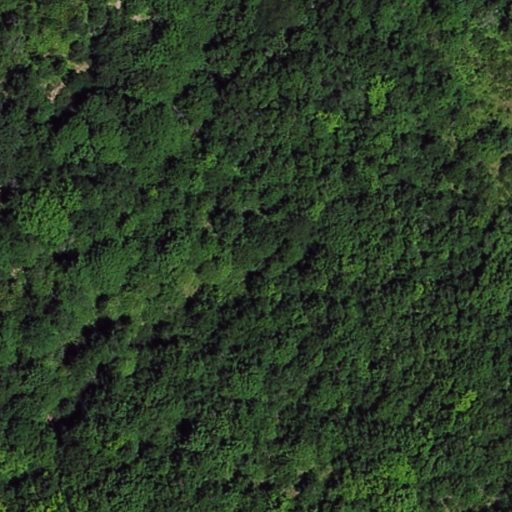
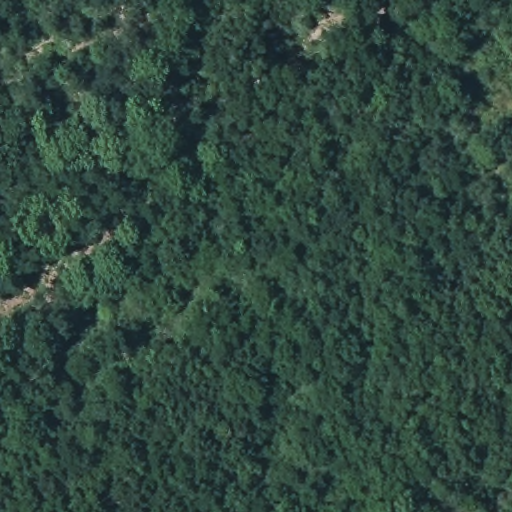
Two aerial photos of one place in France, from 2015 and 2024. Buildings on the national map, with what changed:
unchanged [(367,443),(386,461),(365,482),(345,461),(367,443)]

